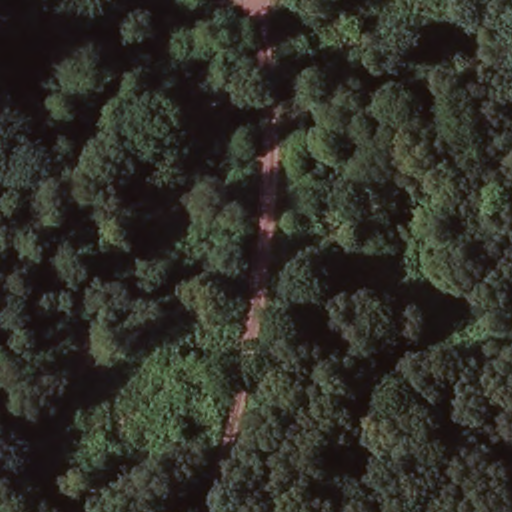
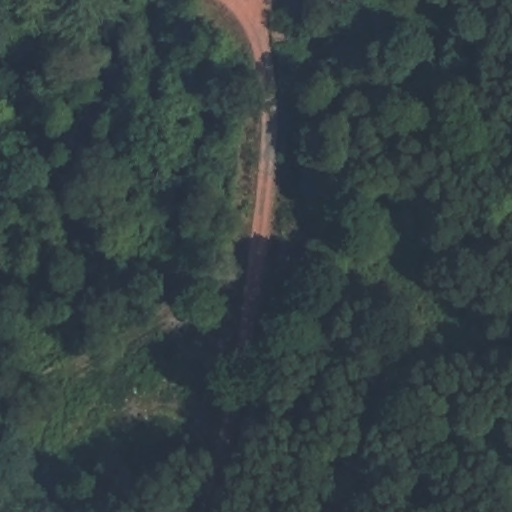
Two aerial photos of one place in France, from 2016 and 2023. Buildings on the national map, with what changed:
unchanged [(278,67),(279,75),(269,77),(268,70),(278,67)]

